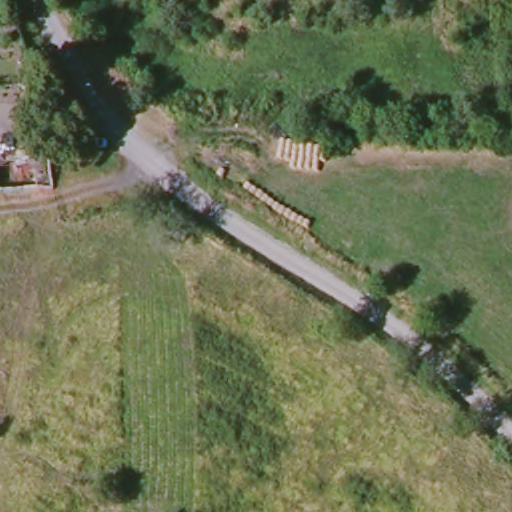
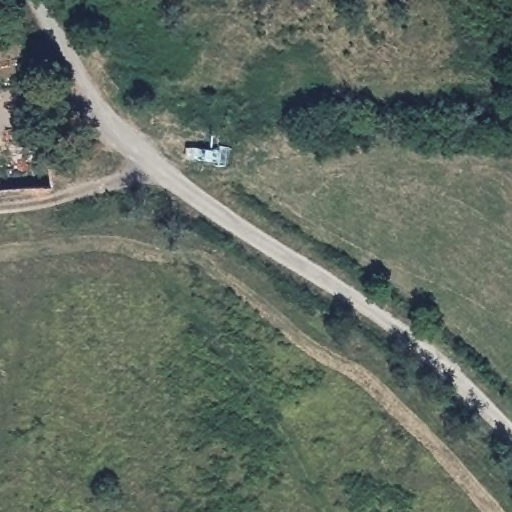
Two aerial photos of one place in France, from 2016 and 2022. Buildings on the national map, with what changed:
unchanged [(14,169),(50,159),(53,195),(0,197),(0,170),(14,169)]

